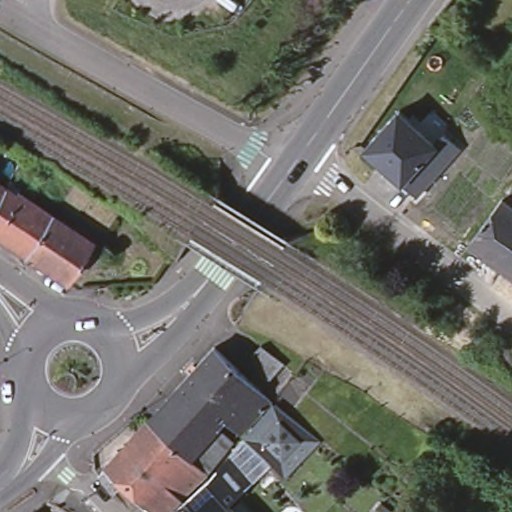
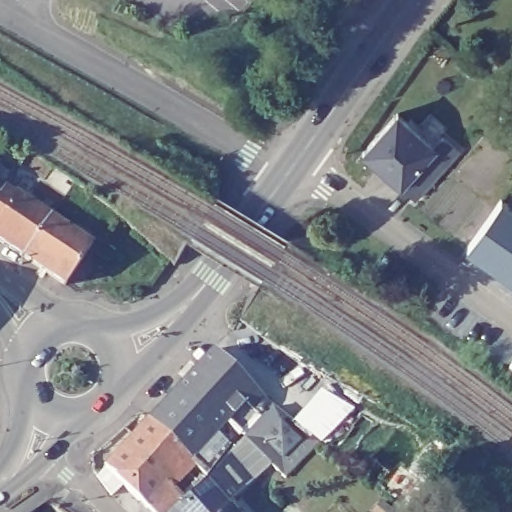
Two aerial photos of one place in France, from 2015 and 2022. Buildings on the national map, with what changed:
unchanged [(372,156),(406,118),(428,138),(395,175),(372,156)]
unchanged [(444,152),(410,189),(395,175),(428,138),(444,152)]
unchanged [(49,216),(21,254),(0,239),(0,185),(5,188),(14,195),(16,192),(49,216)]
unchanged [(496,263),(468,243),(501,198),(512,206),(512,275),(504,269),(496,263)]
unchanged [(91,245),(64,284),(21,254),(49,216),(91,245)]
unchanged [(256,353),(258,351),(281,370),(263,388),(242,368),(256,353)]
unchanged [(121,487),(112,496),(111,497),(97,478),(98,477),(105,471),(103,470),(122,450),(131,440),(146,423),(173,394),(192,373),(211,353),(251,391),(267,405),(204,477),(201,480),(199,486),(190,494),(185,496),(166,512),(149,512),(145,508),(121,487)]
unchanged [(207,483),(218,471),(273,403),(318,438),(285,475),(270,462),(240,495),(228,508),(232,512),(174,512),(194,495),(207,483)]

